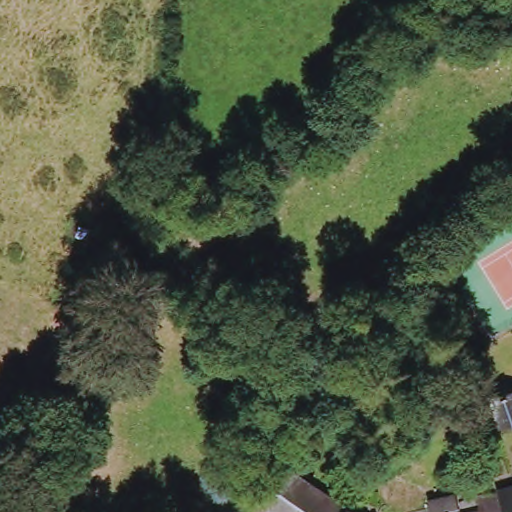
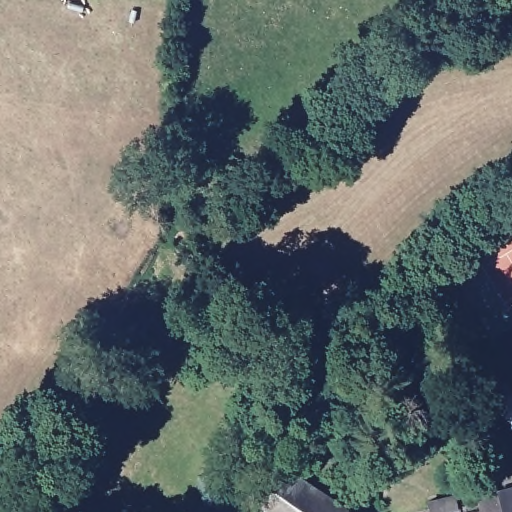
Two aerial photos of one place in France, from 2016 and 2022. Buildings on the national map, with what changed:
unchanged [(501,434),(491,405),(500,403),(500,402),(498,401),(497,398),(497,396),(497,394),(499,392),(501,391),(504,390),(506,390),(508,392),(510,393),(510,396),(510,398),(512,397),(512,430),(501,434)]
unchanged [(259,503),(286,466),(352,512),(272,512),(259,503)]
unchanged [(500,492),(512,488),(512,512),(507,512),(505,506),(500,492)]
unchanged [(429,503),(457,496),(461,512),(431,512),(429,503)]
unchanged [(505,506),(507,512),(481,512),(505,506)]

